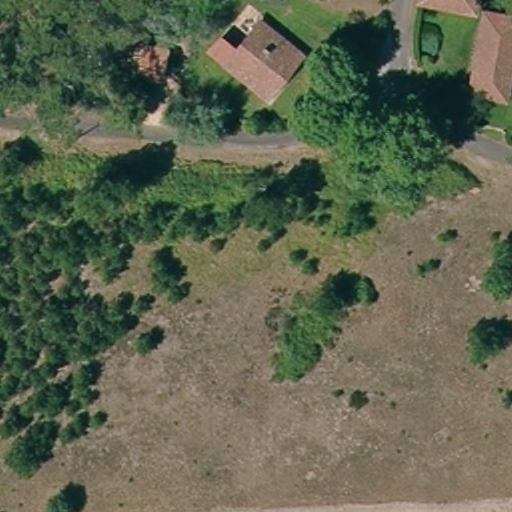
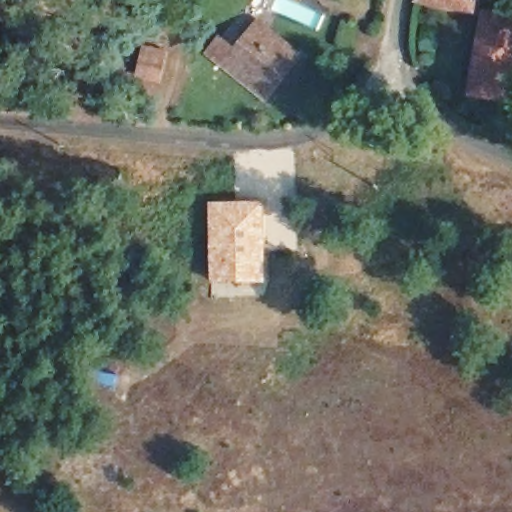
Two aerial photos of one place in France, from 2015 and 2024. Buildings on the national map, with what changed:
unchanged [(414,3),(415,0),(472,0),(470,14),(414,3)]
unchanged [(472,33),(475,16),(512,23),(512,40),(501,105),(461,97),(472,33)]
unchanged [(255,25),(297,58),(260,100),(220,68),(255,25)]
new [(211,283),(210,201),(265,201),(267,282),(211,283)]

